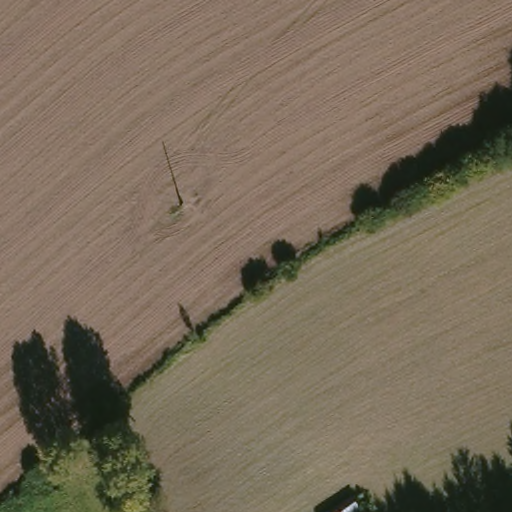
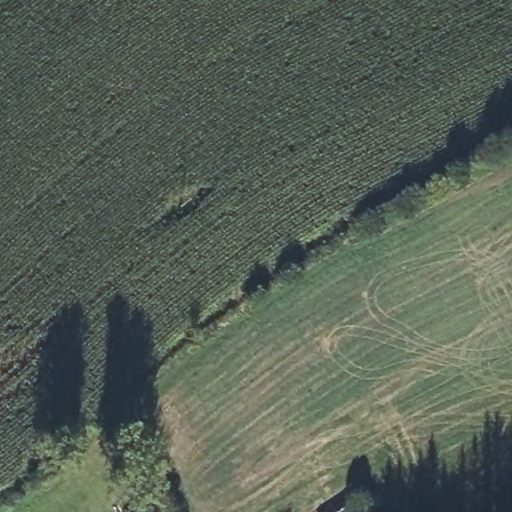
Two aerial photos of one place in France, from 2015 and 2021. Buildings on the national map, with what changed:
unchanged [(328,512),(345,497),(356,512),(328,512)]

